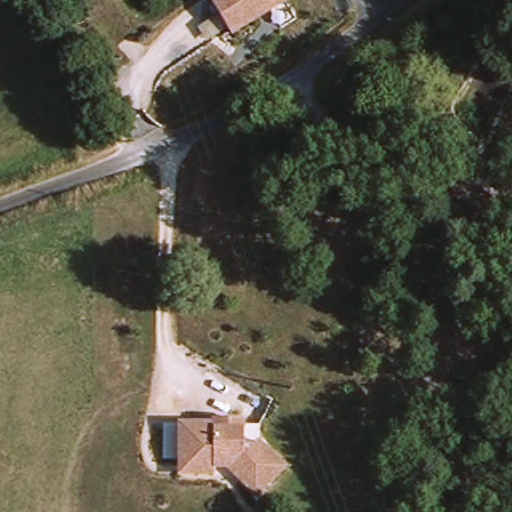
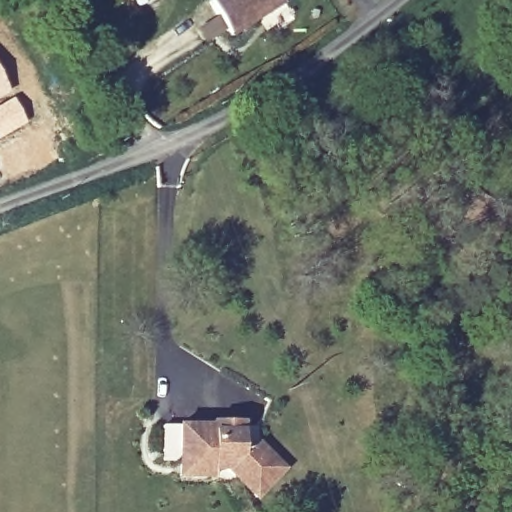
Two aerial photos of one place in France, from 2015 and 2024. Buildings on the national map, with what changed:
unchanged [(209,3),(214,0),(282,0),(283,2),(230,36),(209,3)]
new [(7,94),(0,98),(0,75),(10,92),(7,94)]
new [(27,121),(0,137),(0,98),(7,94),(27,121)]
unchanged [(182,477),(182,461),(166,461),(166,426),(182,426),(216,426),(216,421),(246,420),(246,426),(262,426),(262,445),(287,468),(259,497),(230,469),(217,469),(217,476),(182,477)]

